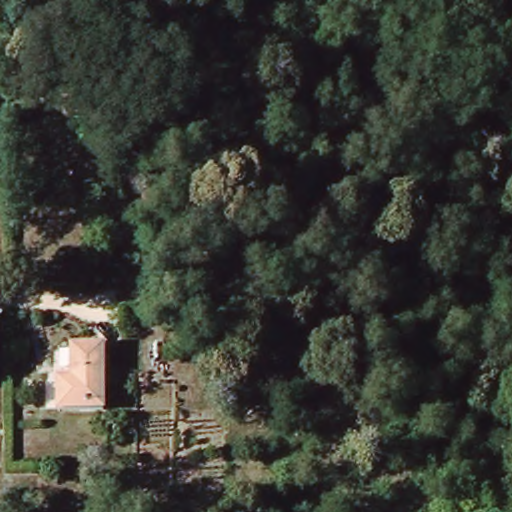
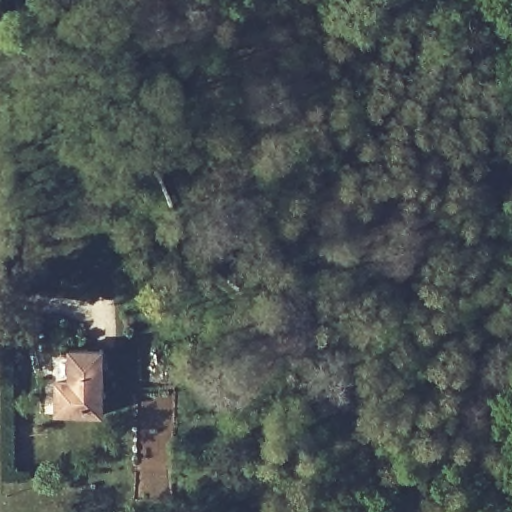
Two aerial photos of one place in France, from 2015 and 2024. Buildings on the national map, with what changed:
unchanged [(105,406),(59,407),(58,378),(73,378),(72,347),(103,347),(105,406)]

